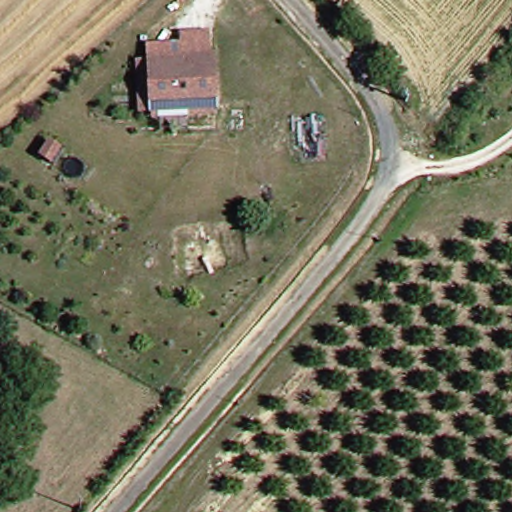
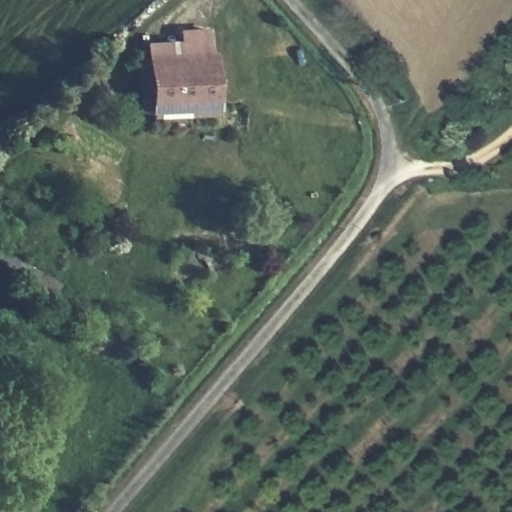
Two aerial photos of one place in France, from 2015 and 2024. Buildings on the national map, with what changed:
unchanged [(211,45),(216,100),(149,103),(145,49),(211,45)]

